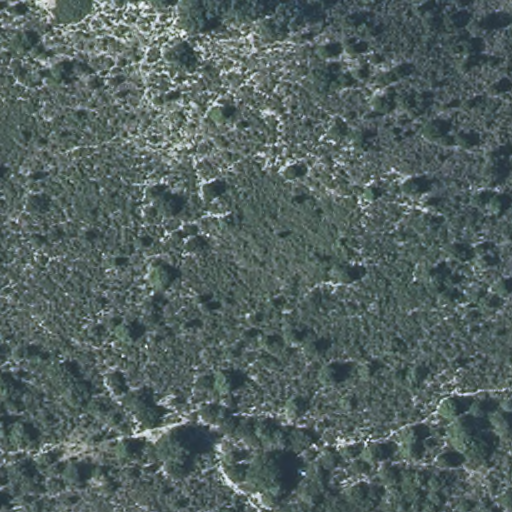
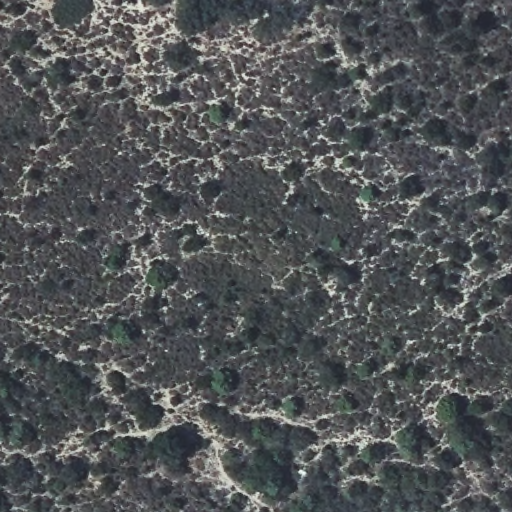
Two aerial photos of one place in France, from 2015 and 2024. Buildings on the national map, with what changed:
[]

